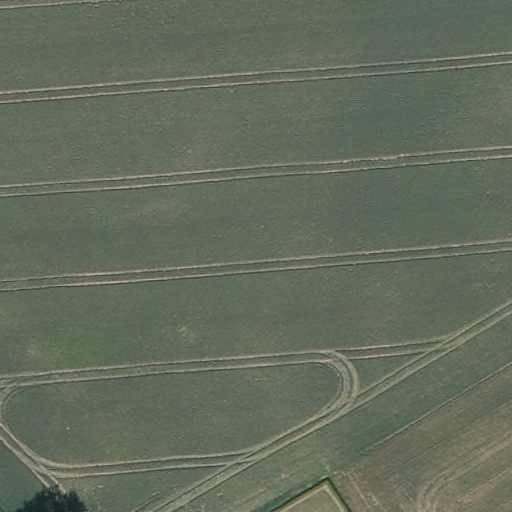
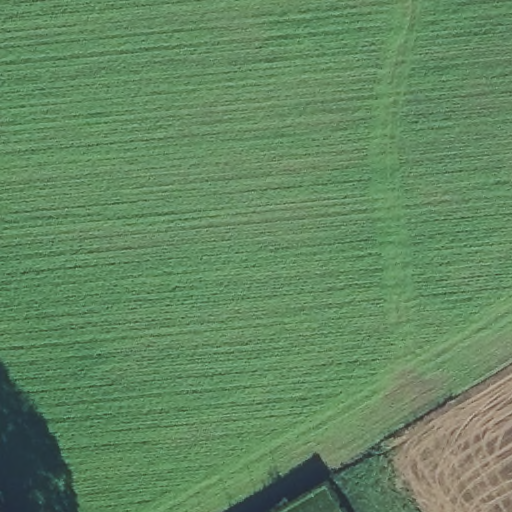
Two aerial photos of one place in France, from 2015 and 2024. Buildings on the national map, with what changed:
[]

